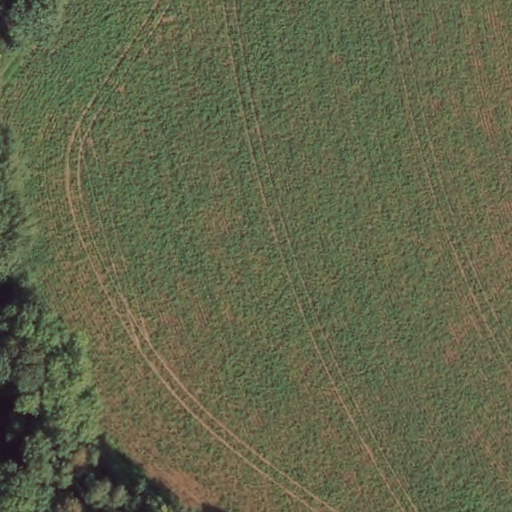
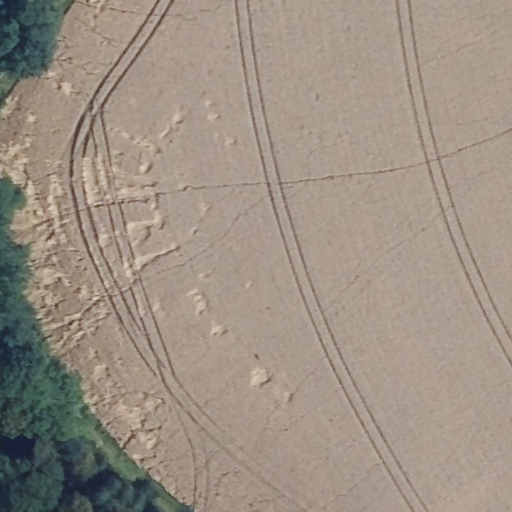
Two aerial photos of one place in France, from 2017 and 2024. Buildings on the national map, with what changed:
unchanged [(12,212),(24,240),(6,246),(0,228),(0,218),(12,212)]

